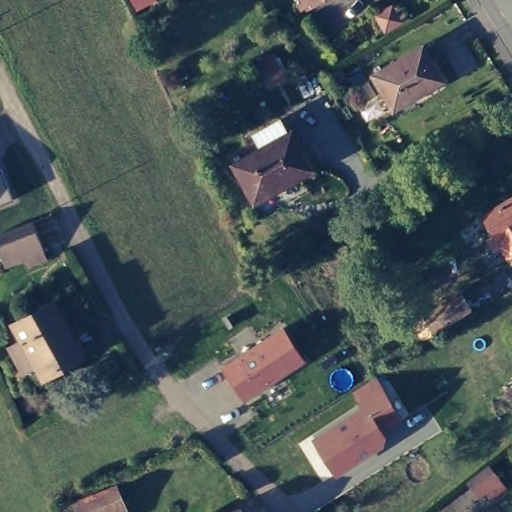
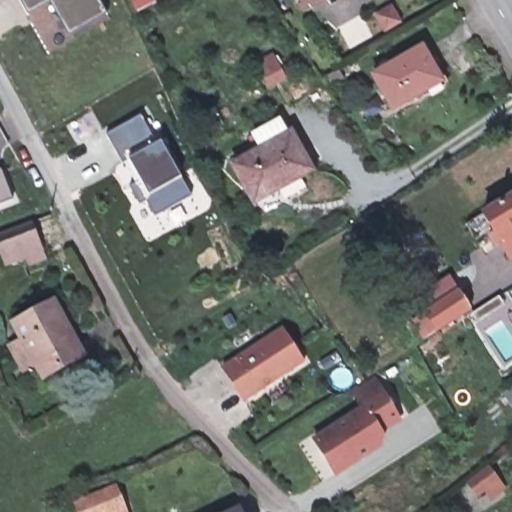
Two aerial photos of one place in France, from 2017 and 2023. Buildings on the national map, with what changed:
new [(99,0),(107,14),(69,34),(51,2),(29,13),(21,0),(99,0)]
unchanged [(310,0),(315,0),(311,2),(310,0)]
unchanged [(423,51),(443,85),(394,113),(374,78),(423,51)]
new [(158,214),(150,198),(143,202),(131,182),(141,175),(132,158),(124,162),(108,132),(141,113),(158,143),(164,140),(194,194),(158,214)]
unchanged [(279,130),(284,142),(288,141),(309,178),(250,211),(229,174),(258,158),(251,145),(279,130)]
unchanged [(3,175),(11,200),(0,205),(0,176),(3,175)]
unchanged [(487,218),(512,202),(512,261),(501,246),(497,248),(490,239),(496,236),(487,225),(479,228),(476,222),(486,217),(487,218)]
unchanged [(28,265),(24,258),(6,268),(1,260),(0,258),(0,236),(28,221),(38,240),(46,254),(28,265)]
unchanged [(461,288),(473,307),(425,337),(414,319),(461,288)]
unchanged [(8,320),(54,296),(88,357),(43,383),(33,366),(21,372),(5,345),(17,337),(8,320)]
unchanged [(223,364),(286,326),(306,363),(244,402),(223,364)]
unchanged [(311,437),(361,407),(357,400),(353,391),(378,378),(379,383),(399,420),(382,431),(387,437),(384,447),(335,475),(311,437)]
new [(512,403),(508,406),(499,393),(512,385),(512,403)]
unchanged [(487,464),(502,485),(489,494),(483,486),(476,491),(467,479),(487,464)]
unchanged [(115,480),(128,512),(82,512),(75,496),(115,480)]
unchanged [(234,504),(238,512),(218,512),(234,504)]

